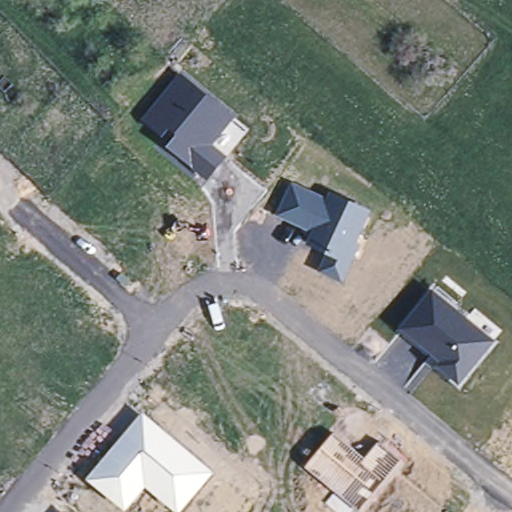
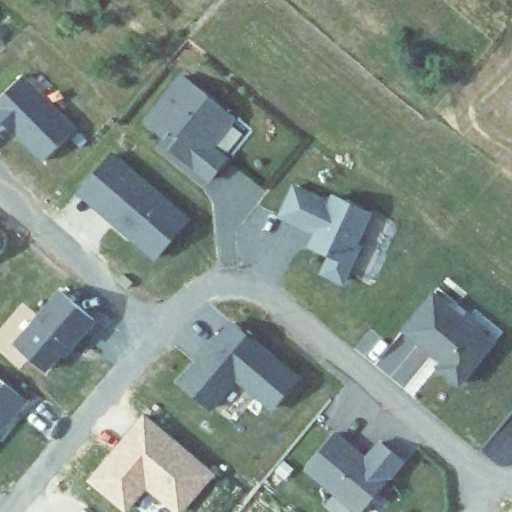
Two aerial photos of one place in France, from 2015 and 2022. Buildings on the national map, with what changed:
unchanged [(239,112),(216,144),(231,155),(208,182),(167,148),(172,142),(142,120),(182,72),(239,112)]
new [(0,98),(22,75),(76,128),(44,160),(17,133),(15,135),(15,134),(1,121),(0,120),(0,98)]
new [(99,209),(80,192),(84,186),(112,154),(188,219),(155,257),(132,237),(125,230),(99,209)]
unchanged [(359,241),(362,243),(346,284),(320,273),(328,253),(307,245),(312,231),(276,215),(292,180),(327,195),(330,190),(374,210),(359,241)]
unchanged [(498,339),(462,388),(434,366),(439,360),(400,330),(433,288),(498,339)]
new [(97,320),(67,358),(61,354),(47,372),(14,342),(60,289),(97,320)]
new [(232,320),(300,378),(272,411),(237,383),(212,411),(177,383),(232,320)]
new [(0,431),(0,379),(26,400),(0,431)]
unchanged [(183,512),(176,512),(148,489),(128,512),(127,512),(87,479),(144,412),(217,471),(183,512)]
unchanged [(379,441),(402,460),(360,512),(359,512),(306,468),(336,432),(366,456),(379,441)]

